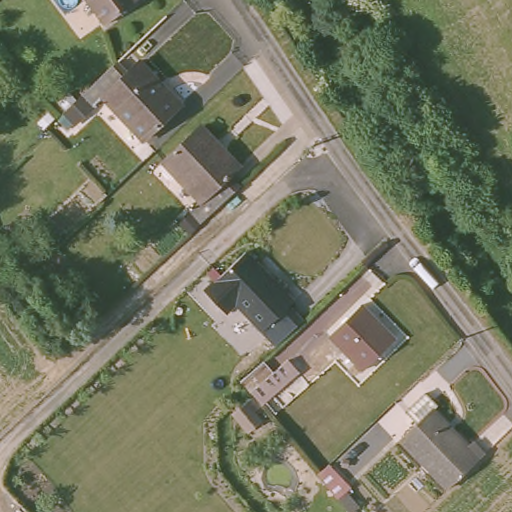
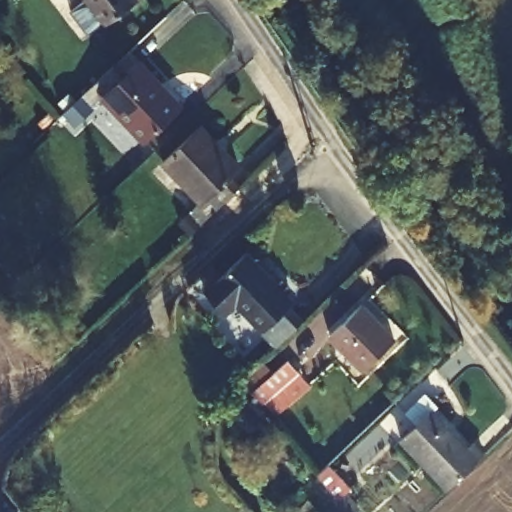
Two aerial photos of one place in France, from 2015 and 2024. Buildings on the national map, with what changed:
unchanged [(136,0),(103,24),(85,0),(136,0)]
unchanged [(106,101),(98,109),(86,98),(119,67),(130,80),(145,67),(181,106),(143,140),(106,101)]
unchanged [(183,214),(199,199),(162,160),(198,124),(235,165),(219,179),(232,193),(195,227),(183,214)]
unchanged [(258,300),(247,309),(228,287),(270,249),(273,252),(277,249),(286,259),(282,263),(296,278),(298,275),(312,291),(309,294),(316,302),(310,307),(323,322),(297,344),(258,300)]
unchanged [(362,308),(392,342),(361,369),(330,334),(362,308)]
unchanged [(262,374),(290,351),(303,366),(318,353),(328,366),(283,403),(273,390),(262,374)]
unchanged [(400,439),(387,423),(423,392),(436,408),(431,412),(468,454),(476,447),(485,456),(447,492),(400,439)]
unchanged [(358,479),(341,491),(332,478),(333,472),(346,461),(358,479)]

